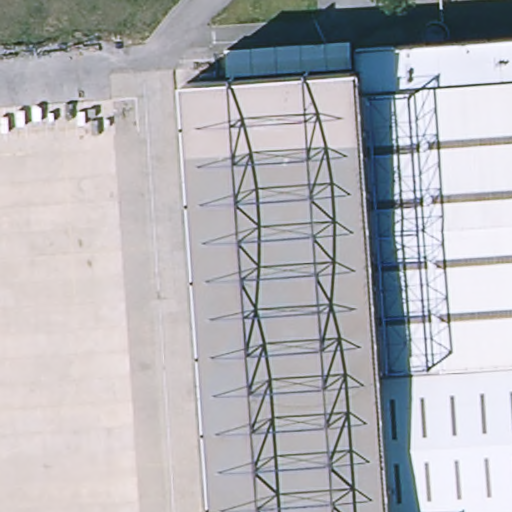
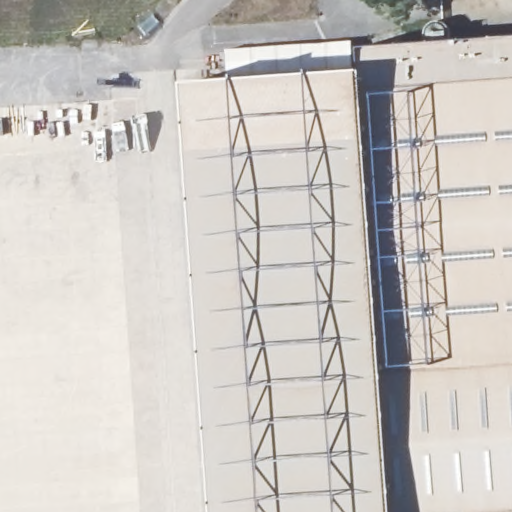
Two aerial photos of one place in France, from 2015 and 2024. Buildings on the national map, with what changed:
unchanged [(352,51),(350,35),(512,22),(512,39),(352,51)]
unchanged [(352,51),(512,39),(512,512),(213,512),(182,64),(352,51)]

